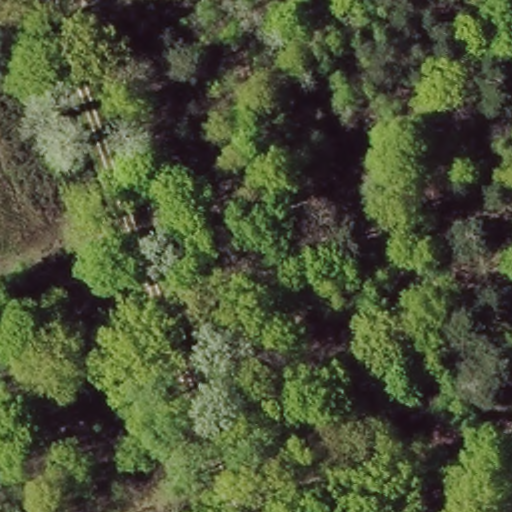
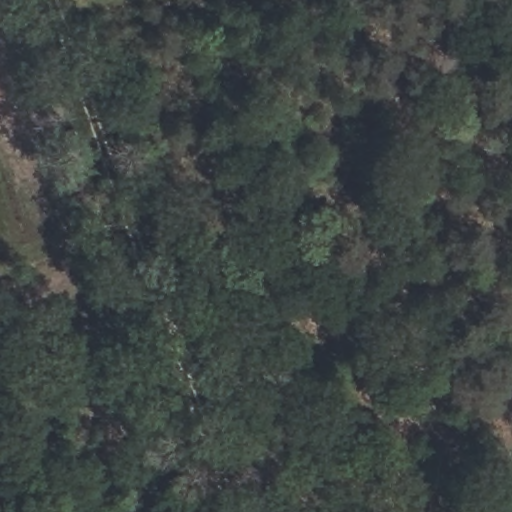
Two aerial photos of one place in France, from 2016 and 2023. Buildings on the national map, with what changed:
[]

